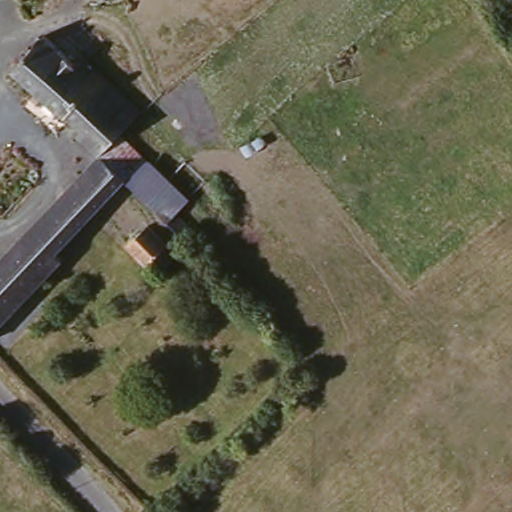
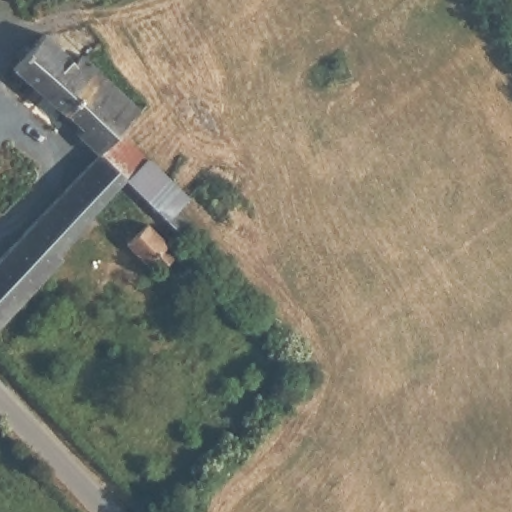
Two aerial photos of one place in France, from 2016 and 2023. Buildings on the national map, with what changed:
unchanged [(69,62),(83,52),(138,117),(95,154),(84,140),(89,133),(77,119),(71,124),(10,57),(39,30),(69,62)]
unchanged [(107,161),(133,190),(130,193),(59,256),(64,262),(0,317),(0,254),(103,164),(107,161)]
unchanged [(164,206),(178,222),(170,230),(155,213),(164,206)]
unchanged [(142,254),(134,259),(116,241),(140,220),(159,239),(153,244),(164,255),(153,265),(142,254)]

